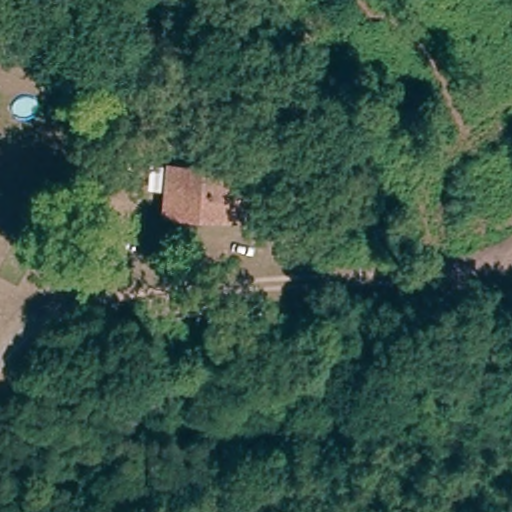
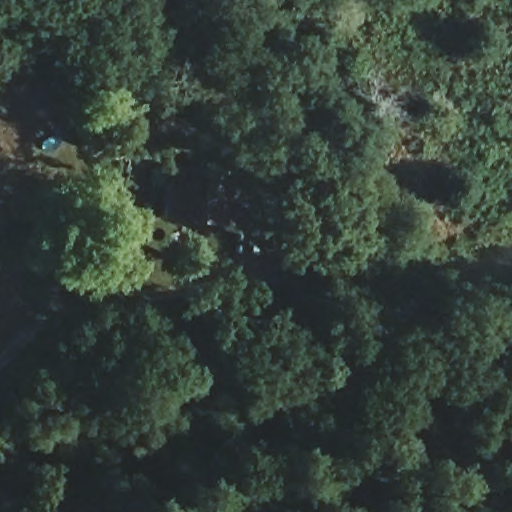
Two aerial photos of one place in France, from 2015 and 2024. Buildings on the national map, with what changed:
unchanged [(228,226),(164,221),(168,173),(232,179),(228,226)]

